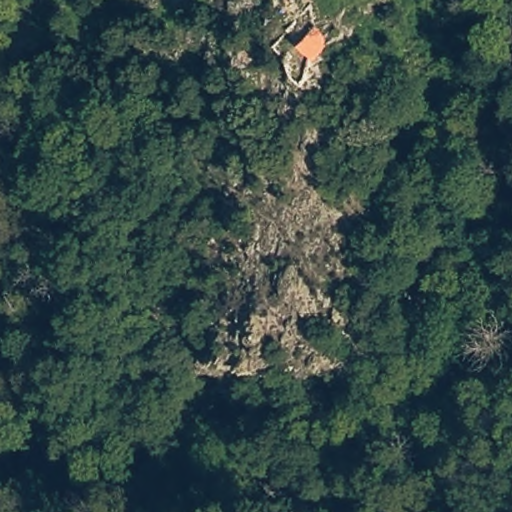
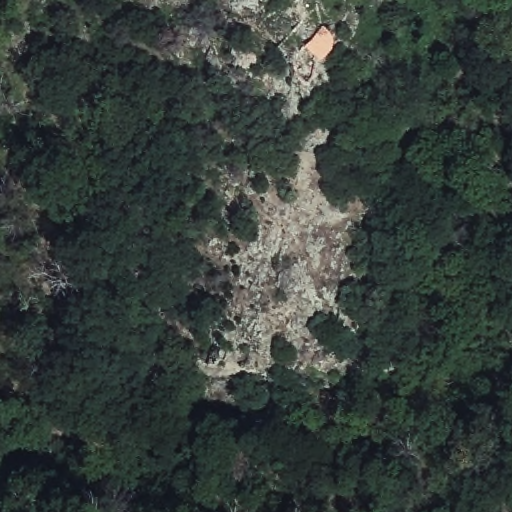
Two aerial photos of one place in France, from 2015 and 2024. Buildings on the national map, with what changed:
unchanged [(332,52),(322,64),(305,49),(314,41),(322,28),(333,39),(332,52)]

